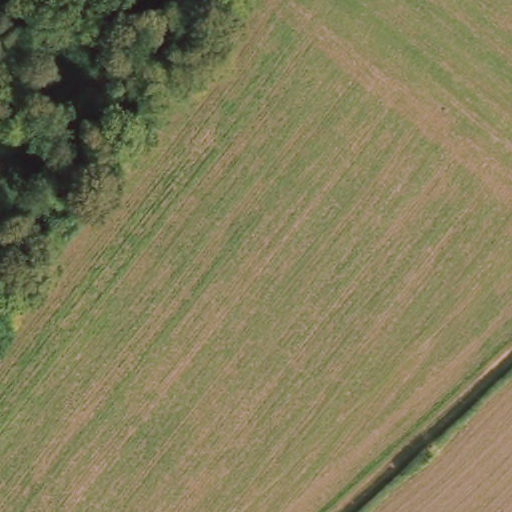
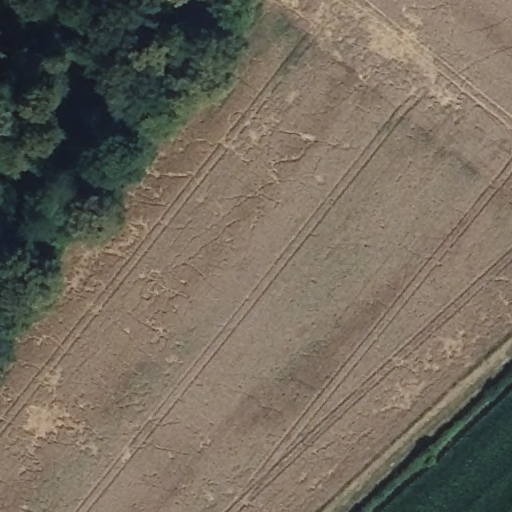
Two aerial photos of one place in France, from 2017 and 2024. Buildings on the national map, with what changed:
unchanged [(192,135),(171,121),(193,93),(215,107),(192,135)]

